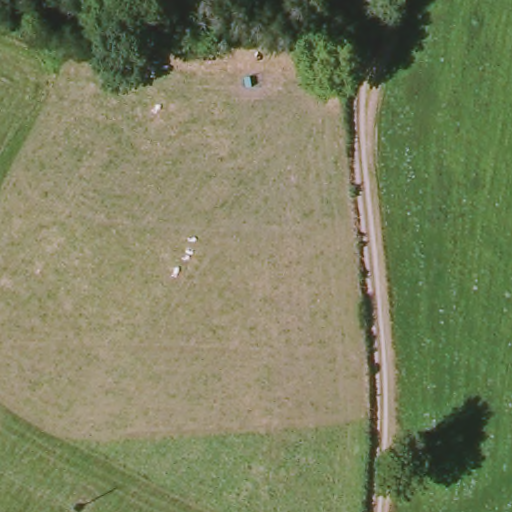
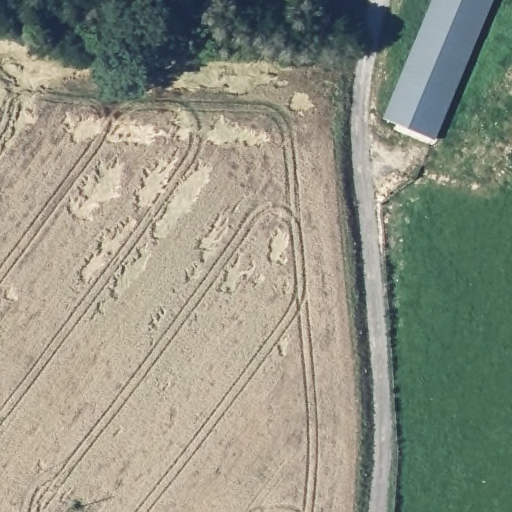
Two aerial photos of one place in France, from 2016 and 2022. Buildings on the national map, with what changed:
unchanged [(332,6),(322,0),(335,0),(332,6)]
new [(385,118),(435,0),(495,0),(437,140),(385,118)]

